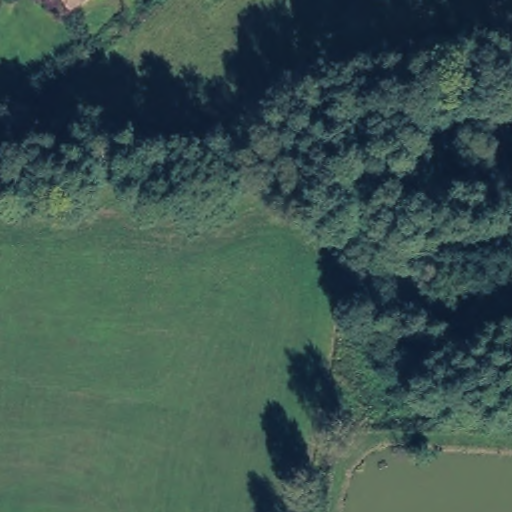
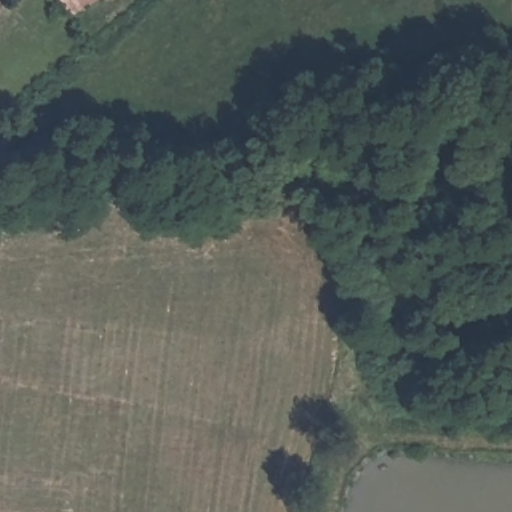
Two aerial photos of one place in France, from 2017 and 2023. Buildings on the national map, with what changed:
unchanged [(74,12),(67,0),(94,0),(74,12)]

